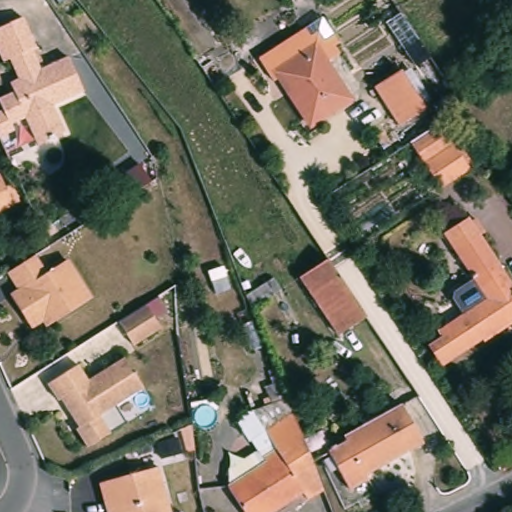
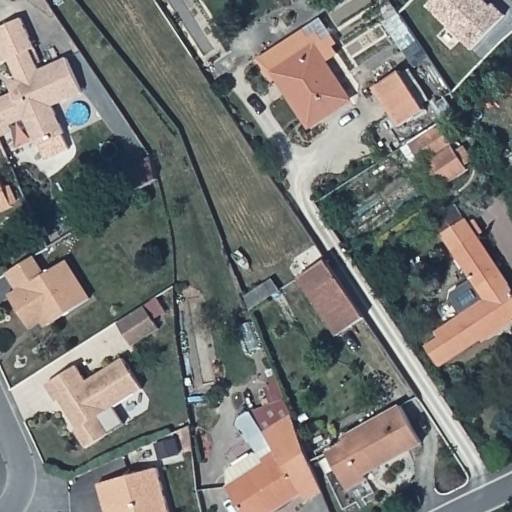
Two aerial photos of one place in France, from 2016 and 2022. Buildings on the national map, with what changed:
new [(433,0),(487,0),(492,5),(495,2),(505,14),(472,47),(430,4),(433,0)]
unchanged [(2,97),(18,90),(14,81),(23,77),(14,56),(7,59),(0,44),(0,27),(26,15),(39,45),(35,47),(44,67),(72,55),(87,89),(57,102),(69,130),(42,142),(30,115),(14,122),(16,128),(2,134),(0,128),(0,111),(7,108),(2,97)]
unchanged [(323,62),(313,48),(275,75),(278,80),(273,84),(258,59),(322,19),(340,42),(334,46),(338,55),(323,62)]
unchanged [(348,102),(310,127),(275,75),(313,48),(348,102)]
unchanged [(423,111),(398,129),(373,90),(398,73),(423,111)]
unchanged [(435,127),(442,122),(457,143),(473,167),(445,187),(428,162),(414,141),(435,127)]
unchanged [(0,174),(3,172),(17,204),(0,211),(0,174)]
unchanged [(463,292),(477,276),(447,231),(470,216),(481,234),(512,280),(512,318),(460,353),(446,362),(433,345),(447,336),(444,330),(471,311),(466,304),(463,292)]
unchanged [(44,318),(35,325),(26,312),(23,307),(22,308),(12,294),(22,288),(10,271),(36,255),(47,272),(69,258),(92,297),(54,321),(48,325),(44,318)]
unchanged [(338,337),(300,280),(327,262),(332,270),(364,320),(338,337)]
unchanged [(121,320),(145,305),(147,303),(162,327),(136,343),(121,320)]
unchanged [(82,362),(92,378),(128,355),(147,386),(103,413),(114,430),(91,445),(80,427),(82,425),(65,397),(62,398),(52,382),(82,362)]
unchanged [(258,455),(272,447),(263,433),(249,442),(238,426),(242,416),(251,414),(287,402),(322,492),(306,502),(301,495),(273,512),(241,512),(227,489),(226,472),(256,452),(258,455)]
unchanged [(400,410),(421,445),(365,477),(367,481),(348,491),(328,455),(346,444),(344,441),(400,410)]
unchanged [(186,427),(196,422),(201,447),(191,449),(186,427)]
unchanged [(164,438),(184,435),(187,450),(167,453),(164,438)]
unchanged [(115,512),(115,511),(111,512),(102,481),(162,465),(175,512),(115,512)]

